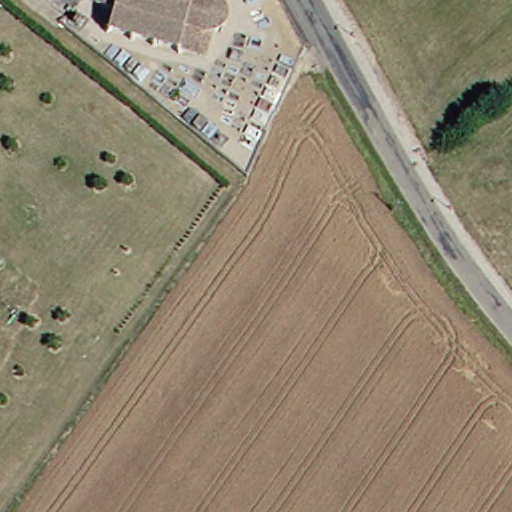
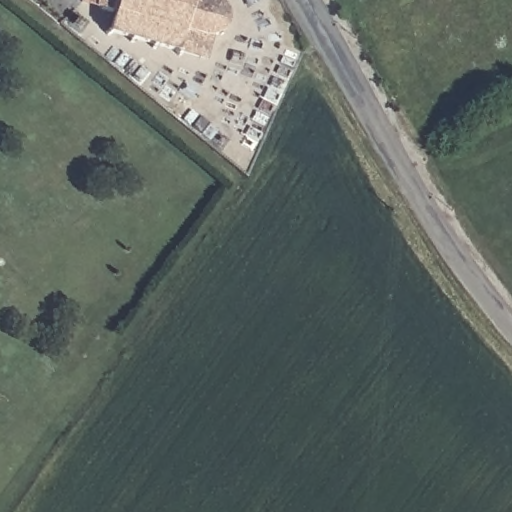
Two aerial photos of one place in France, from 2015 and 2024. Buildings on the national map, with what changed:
unchanged [(228,0),(224,13),(242,18),(231,53),(211,47),(204,68),(102,35),(107,15),(77,5),(80,0),(228,0)]

